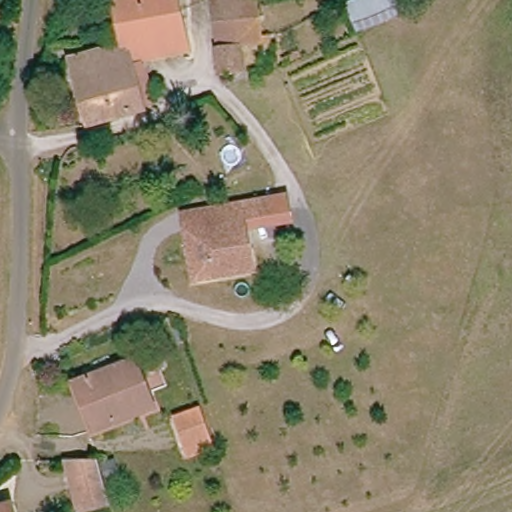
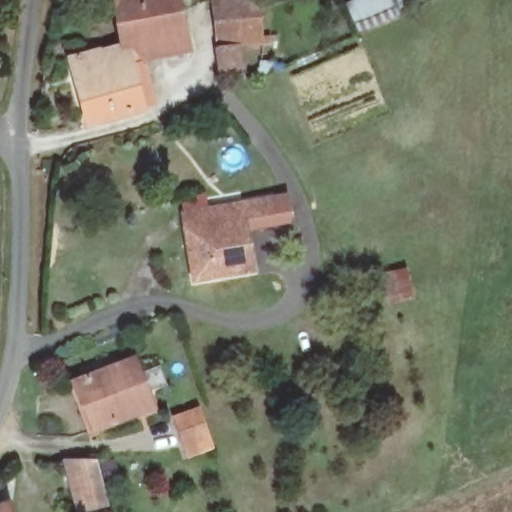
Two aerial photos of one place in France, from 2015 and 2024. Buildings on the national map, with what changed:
unchanged [(91,125),(76,67),(120,51),(119,47),(115,29),(112,0),(182,0),(183,6),(192,54),(150,67),(155,105),(144,109),(91,125)]
unchanged [(214,33),(209,0),(255,0),(251,1),(255,27),(257,43),(215,51),(214,33)]
unchanged [(347,10),(368,0),(392,0),(402,21),(357,36),(347,10)]
unchanged [(216,56),(242,52),(246,80),(221,85),(216,56)]
unchanged [(196,286),(185,219),(212,216),(245,210),(246,226),(255,276),(196,286)]
unchanged [(150,416),(89,428),(81,383),(141,368),(150,416)]
unchanged [(179,447),(172,423),(199,416),(206,440),(212,454),(184,462),(179,447)]
unchanged [(111,512),(71,512),(59,463),(104,467),(115,511),(111,512)]

